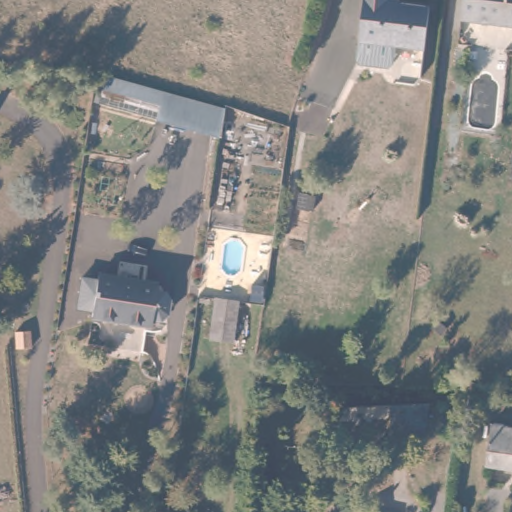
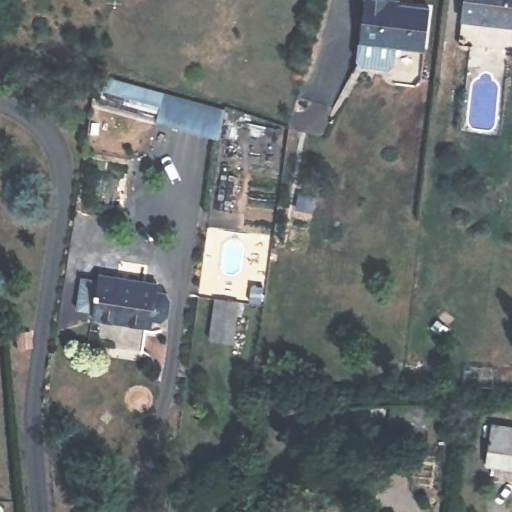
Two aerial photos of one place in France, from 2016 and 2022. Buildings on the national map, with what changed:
unchanged [(386,64),(359,63),(355,58),(361,0),(411,0),(428,1),(424,43),(393,42),(391,60),(386,64)]
unchanged [(463,0),(512,0),(512,31),(460,25),(463,0)]
unchanged [(219,104),(217,135),(164,129),(159,108),(99,95),(100,76),(219,104)]
unchanged [(148,327),(139,325),(129,359),(77,345),(88,304),(72,300),(81,269),(96,273),(98,268),(161,285),(148,327)]
unchanged [(237,302),(232,343),(210,342),(215,301),(237,302)]
unchanged [(8,334),(9,350),(0,350),(0,334),(8,334)]
unchanged [(412,400),(415,434),(379,438),(376,405),(380,405),(412,400)]
unchanged [(512,471),(488,470),(492,426),(512,426),(512,471)]

